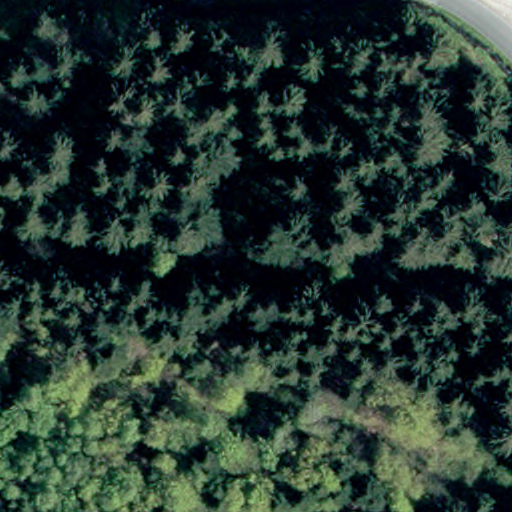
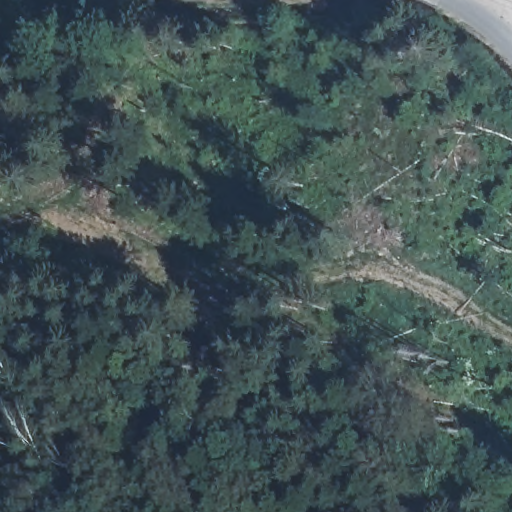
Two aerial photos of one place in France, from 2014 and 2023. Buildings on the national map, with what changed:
[]

